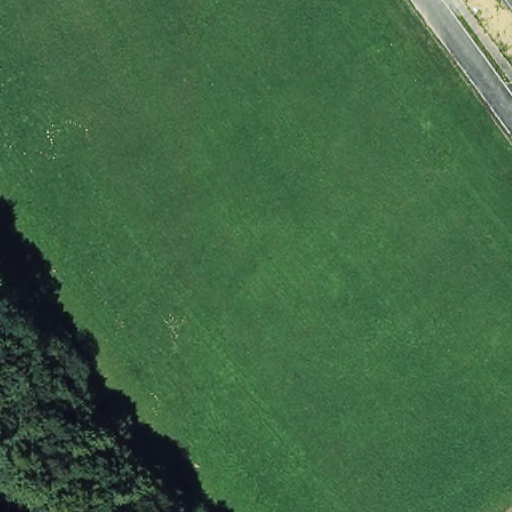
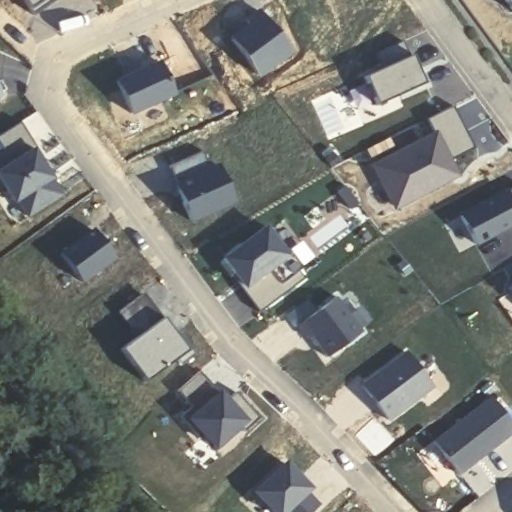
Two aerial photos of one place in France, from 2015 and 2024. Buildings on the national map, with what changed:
new [(31,12),(22,0),(50,0),(31,12)]
unchanged [(504,0),(512,0),(512,12),(504,0)]
new [(260,11),(290,53),(259,78),(228,37),(260,11)]
new [(411,55),(424,83),(377,104),(365,76),(411,55)]
new [(154,57),(173,93),(132,114),(114,78),(154,57)]
new [(473,149),(448,162),(452,173),(427,184),(432,194),(394,212),(371,165),(432,134),(425,117),(451,103),(473,149)]
new [(35,144),(0,165),(0,133),(21,120),(35,144)]
new [(66,194),(26,219),(0,183),(0,165),(35,144),(66,194)]
new [(204,149),(225,185),(231,204),(190,223),(167,165),(204,149)]
new [(512,187),(512,226),(475,245),(460,214),(512,187)]
new [(266,223),(286,250),(290,255),(242,290),(219,257),(266,223)]
new [(92,229),(115,259),(80,283),(59,253),(92,229)]
new [(290,255),(286,250),(302,239),(315,256),(300,268),(307,278),(258,312),(242,290),(290,255)]
new [(144,291),(161,315),(133,336),(115,311),(144,291)]
new [(336,295),(340,300),(347,295),(356,307),(361,303),(373,320),(325,358),(296,325),(336,295)]
new [(133,336),(161,315),(190,353),(185,357),(184,355),(145,383),(119,348),(133,336)]
new [(408,347),(434,385),(390,418),(361,381),(408,347)]
new [(215,387),(219,384),(252,420),(217,450),(188,415),(193,409),(177,391),(202,369),(215,387)]
new [(490,395),(512,422),(512,435),(459,476),(431,441),(490,395)]
new [(373,416),(394,440),(375,457),(352,434),(373,416)]
new [(270,512),(248,490),(283,459),(311,489),(309,491),(320,504),(311,512),(270,512)]

